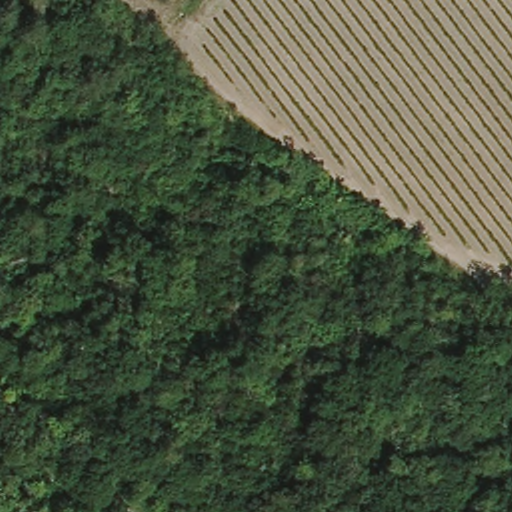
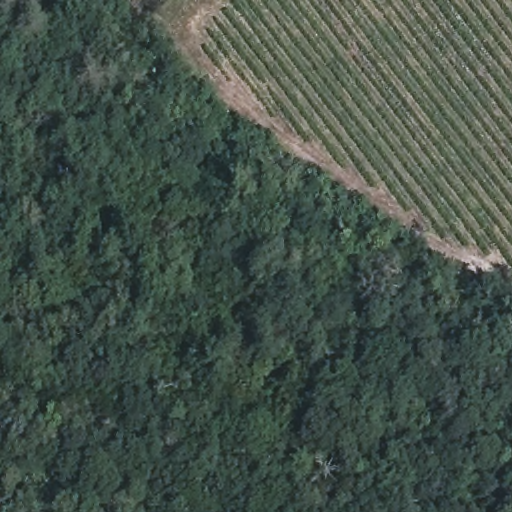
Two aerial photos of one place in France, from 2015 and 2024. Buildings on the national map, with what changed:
[]

